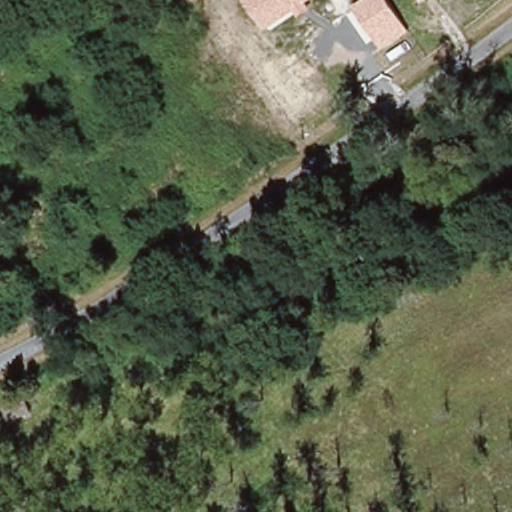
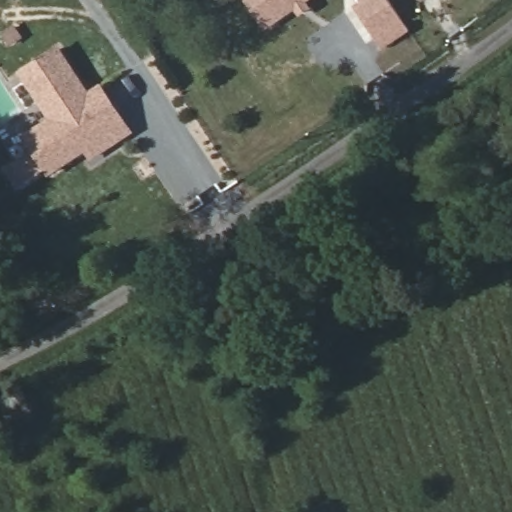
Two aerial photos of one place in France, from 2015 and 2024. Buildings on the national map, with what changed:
unchanged [(266,33),(243,0),(313,0),(266,33)]
unchanged [(382,51),(353,8),(364,0),(388,0),(410,32),(382,51)]
unchanged [(421,5),(418,0),(428,0),(421,5)]
new [(49,119),(19,73),(60,45),(89,92),(102,83),(135,133),(92,162),(87,153),(49,177),(23,135),(49,119)]

